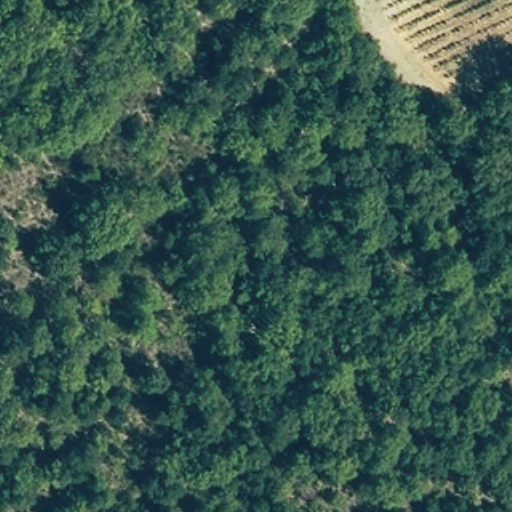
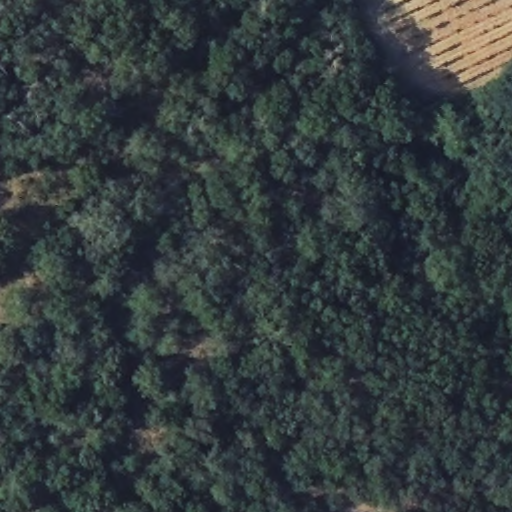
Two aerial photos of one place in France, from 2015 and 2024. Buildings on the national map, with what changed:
[]

